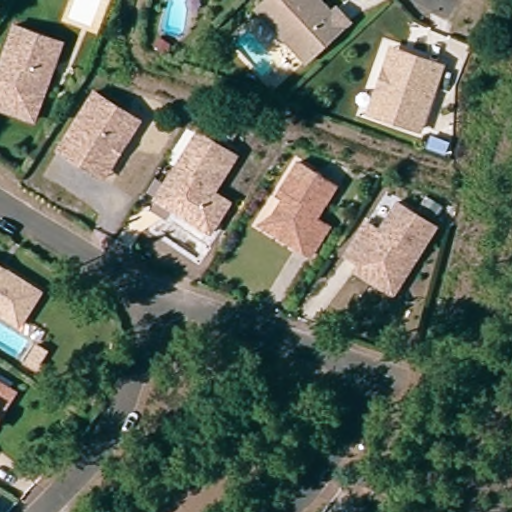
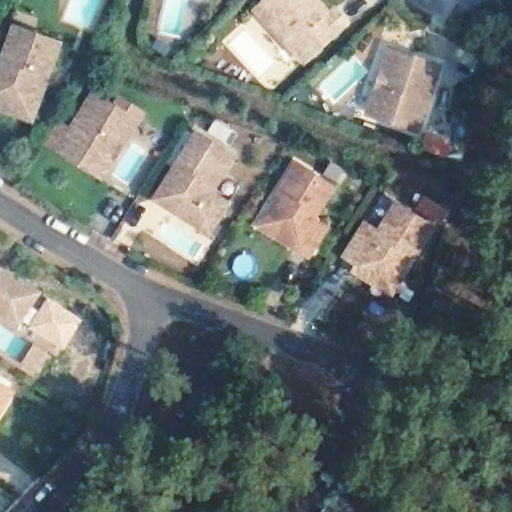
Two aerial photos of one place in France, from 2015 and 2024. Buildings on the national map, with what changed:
unchanged [(259,12),(272,0),(317,0),(332,16),(337,12),(349,25),(307,64),(259,12)]
unchanged [(0,107),(0,60),(14,23),(61,41),(49,75),(32,120),(0,107)]
unchanged [(378,91),(389,60),(392,50),(412,58),(443,69),(420,133),(382,120),(369,115),(378,91)]
unchanged [(61,144),(99,86),(132,109),(143,116),(129,137),(110,167),(105,174),(88,161),(61,144)]
unchanged [(176,163),(196,134),(234,159),(210,195),(226,205),(206,236),(189,225),(152,200),(176,163)]
unchanged [(432,135),(450,141),(446,152),(428,147),(432,135)]
unchanged [(276,210),(285,198),(278,194),(283,186),(300,161),(338,186),(317,218),(329,226),(309,256),(296,247),(259,223),(276,210)]
unchanged [(354,271),(358,265),(345,256),(368,222),(380,231),(398,203),(437,229),(418,257),(392,296),(354,271)]
unchanged [(4,273),(39,296),(18,328),(0,316),(0,271),(4,273)]
new [(83,319),(64,350),(29,327),(30,325),(23,320),(32,305),(39,310),(48,296),(83,319)]
unchanged [(12,395),(0,412),(0,388),(12,395)]

